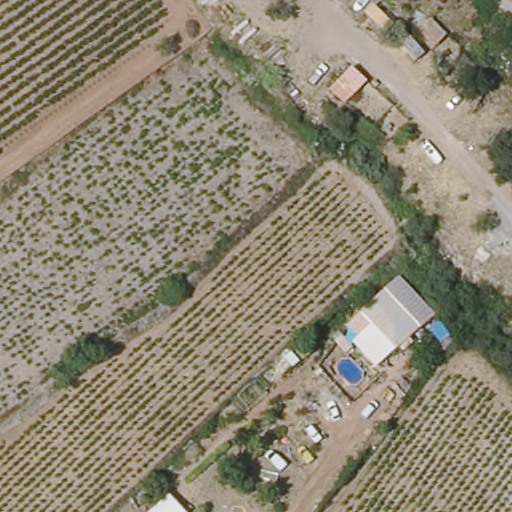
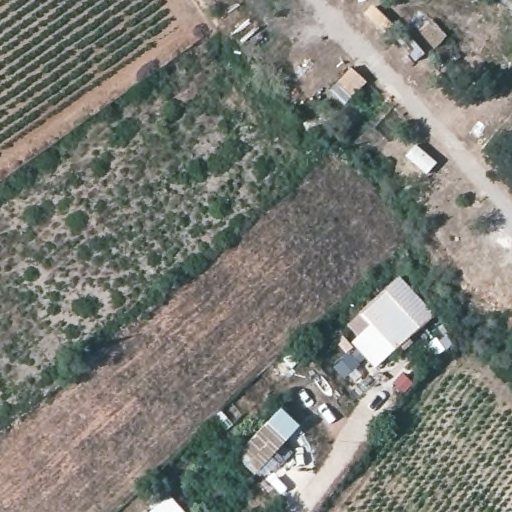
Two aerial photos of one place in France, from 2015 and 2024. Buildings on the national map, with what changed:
unchanged [(425,323),(400,345),(376,321),(363,309),(387,282),(425,323)]
unchanged [(400,345),(375,372),(352,343),(376,321),(400,345)]
new [(295,453),(282,466),(273,457),(258,472),(238,451),(282,408),(302,428),(286,444),(295,453)]
unchanged [(187,512),(147,512),(168,491),(187,512)]

